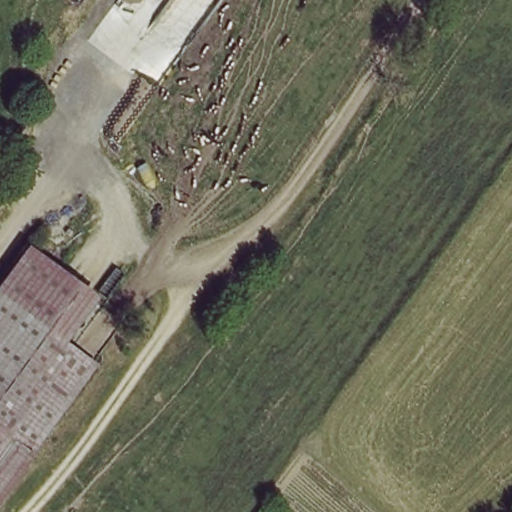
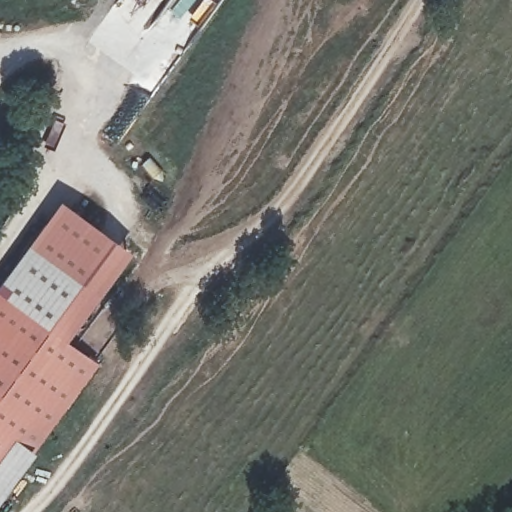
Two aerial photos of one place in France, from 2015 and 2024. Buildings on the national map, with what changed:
new [(60,199),(131,251),(68,340),(100,362),(96,367),(62,341),(95,295),(30,247),(0,288),(0,280),(60,199)]
unchanged [(30,247),(95,295),(62,341),(0,295),(0,288),(30,247)]
unchanged [(62,341),(96,367),(30,456),(0,436),(0,295),(62,341)]
unchanged [(30,456),(0,495),(0,436),(30,456)]

